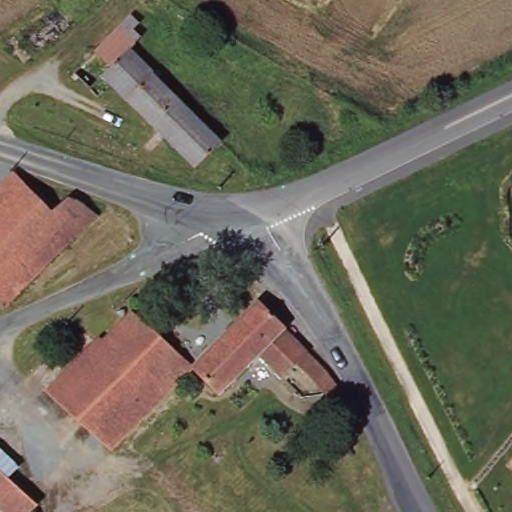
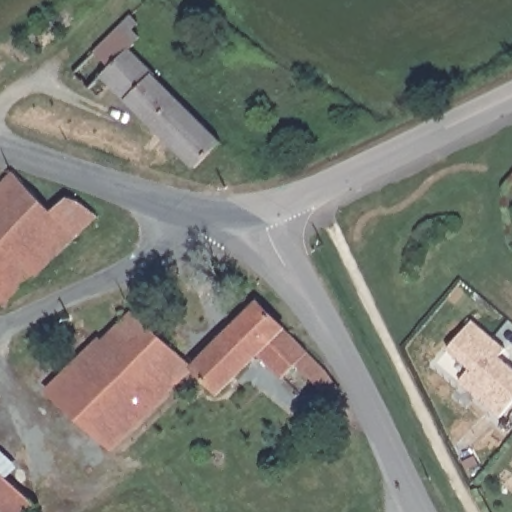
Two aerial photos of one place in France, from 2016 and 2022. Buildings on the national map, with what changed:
unchanged [(136,16),(140,21),(136,28),(143,37),(139,41),(135,44),(121,28),(136,16)]
unchanged [(108,77),(134,51),(224,141),(198,168),(108,77)]
unchanged [(71,195),(102,214),(7,307),(0,301),(0,186),(16,170),(54,210),(71,195)]
unchanged [(249,362),(243,367),(217,393),(201,376),(193,367),(260,300),(340,382),(327,397),(296,362),(282,378),(268,364),(261,372),(249,362)]
unchanged [(112,448),(47,389),(99,337),(103,340),(131,311),(193,367),(112,448)]
new [(507,348),(501,356),(512,365),(512,404),(501,417),(460,382),(470,368),(448,350),(473,320),(507,348)]
unchanged [(10,477),(38,505),(30,512),(0,512),(0,446),(20,464),(10,477)]

